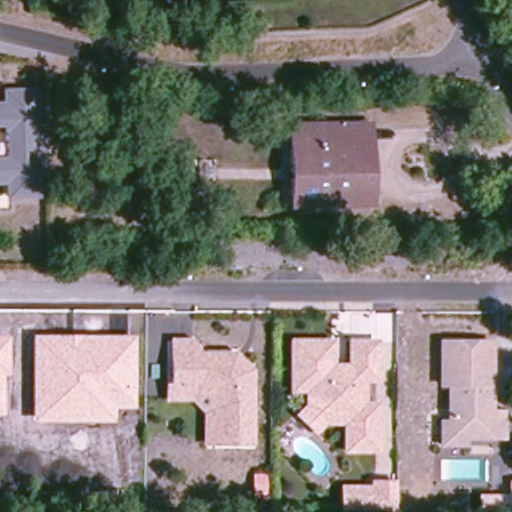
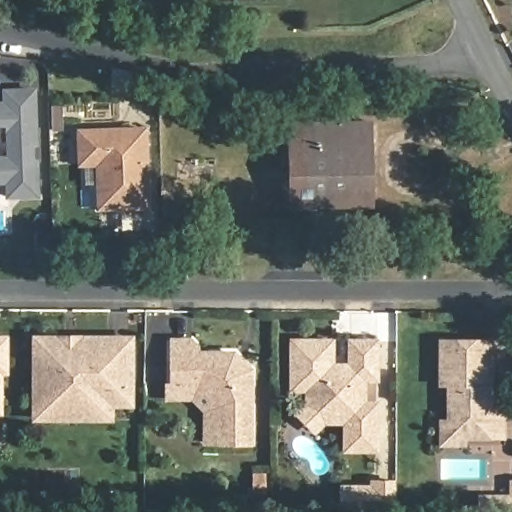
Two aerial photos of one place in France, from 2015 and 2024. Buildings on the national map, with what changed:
unchanged [(0,195),(0,156),(7,155),(6,126),(0,126),(0,100),(2,100),(4,86),(36,86),(40,193),(0,195)]
new [(97,210),(95,167),(77,167),(76,128),(147,126),(151,209),(97,210)]
unchanged [(373,128),(372,207),(296,207),(295,129),(373,128)]
unchanged [(9,376),(1,376),(1,415),(0,414),(0,336),(8,337),(9,376)]
unchanged [(134,408),(114,409),(113,422),(30,422),(33,336),(134,336),(134,408)]
unchanged [(202,447),(202,415),(188,402),(161,404),(162,383),(167,382),(170,338),(191,336),(202,350),(235,348),(256,370),(255,447),(202,447)]
unchanged [(367,382),(367,402),(378,402),(375,452),(341,453),(340,426),(323,426),(315,436),(294,416),(302,407),(301,393),(290,393),(290,340),(336,340),(336,363),(346,362),(345,342),(375,340),(377,378),(367,382)]
unchanged [(505,410),(506,439),(467,441),(467,447),(439,449),(440,421),(446,419),(446,390),(439,390),(438,341),(491,340),(490,411),(505,410)]
unchanged [(399,512),(336,512),(336,485),(367,484),(369,480),(397,481),(399,512)]
new [(512,497),(512,512),(485,512),(485,497),(500,497),(512,497)]

